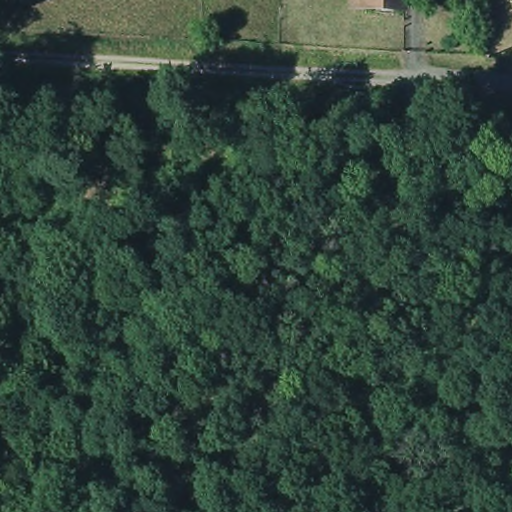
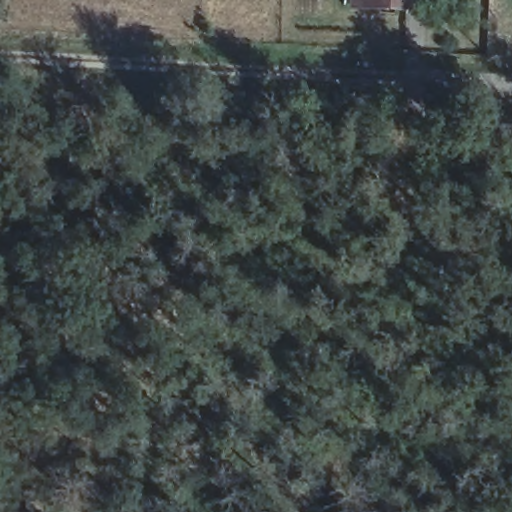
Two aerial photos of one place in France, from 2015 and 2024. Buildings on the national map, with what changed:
unchanged [(413,0),(413,9),(371,9),(372,0),(413,0)]

